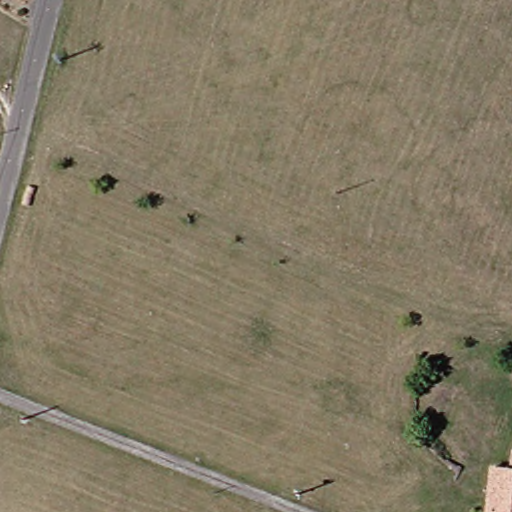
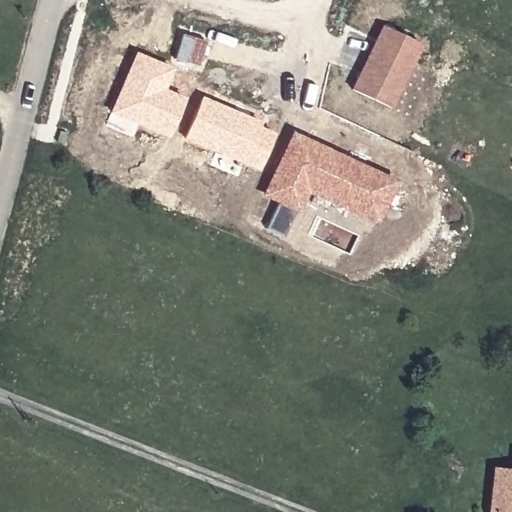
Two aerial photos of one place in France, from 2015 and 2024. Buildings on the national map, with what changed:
new [(393,108),(353,90),(384,24),(424,44),(393,108)]
new [(168,89),(189,99),(172,138),(113,113),(138,51),(178,69),(168,89)]
new [(264,128),(280,134),(262,172),(187,138),(204,96),(267,124),(264,128)]
new [(380,224),(311,192),(289,237),(270,227),(282,203),(264,195),(295,131),(401,181),(380,224)]
unchanged [(494,463),(512,464),(512,512),(490,512),(494,463)]

